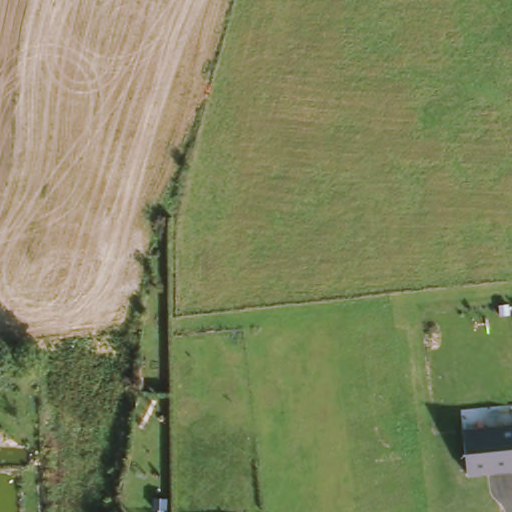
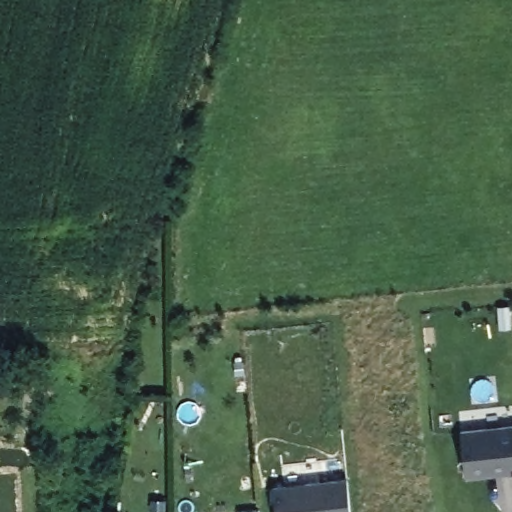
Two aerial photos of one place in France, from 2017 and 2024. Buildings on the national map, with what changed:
unchanged [(484,472),(463,476),(459,431),(512,425),(512,472),(507,472),(485,475),(484,472)]
new [(276,485),(287,483),(287,489),(291,488),(290,483),(347,478),(351,512),(279,512),(276,485)]

